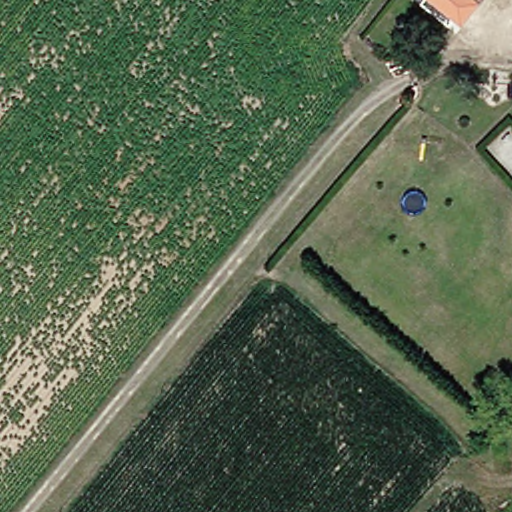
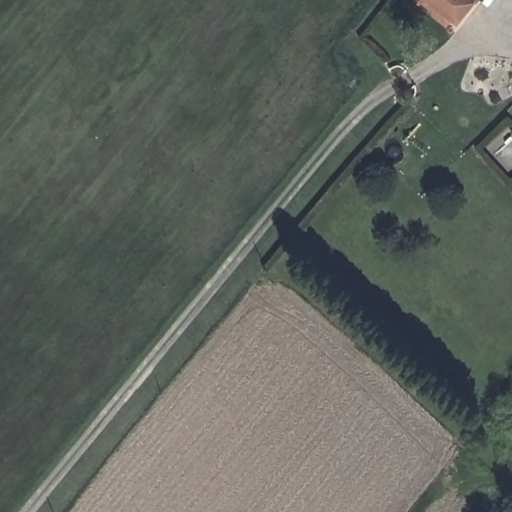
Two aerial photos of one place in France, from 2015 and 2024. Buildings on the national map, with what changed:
unchanged [(413,0),(465,0),(450,17),(444,25),(413,0)]

